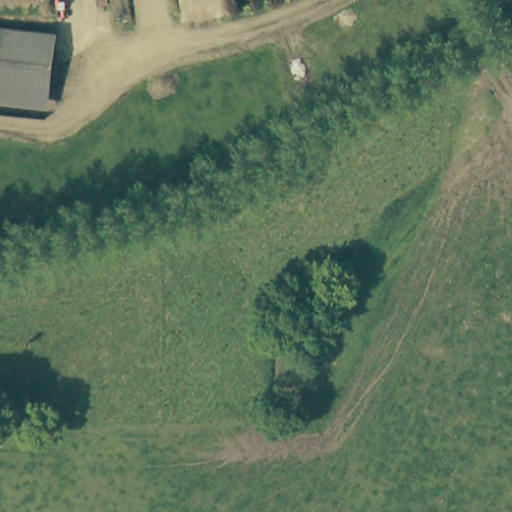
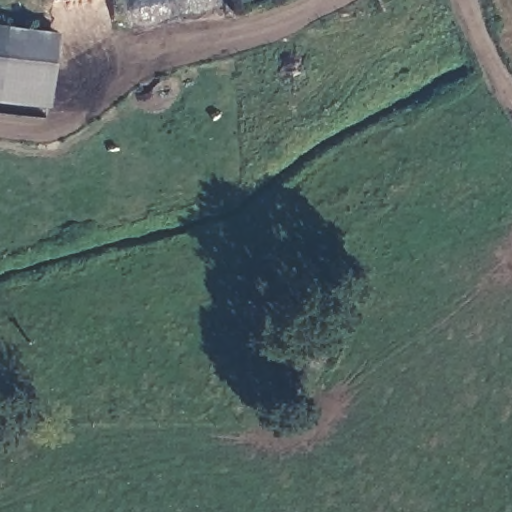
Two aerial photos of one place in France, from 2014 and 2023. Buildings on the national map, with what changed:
unchanged [(46,102),(0,97),(0,35),(50,40),(46,102)]

